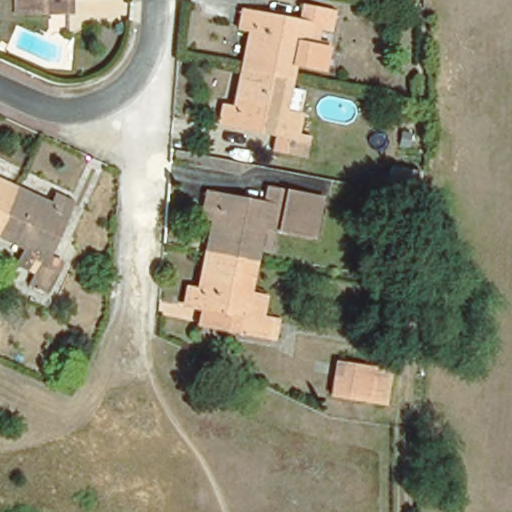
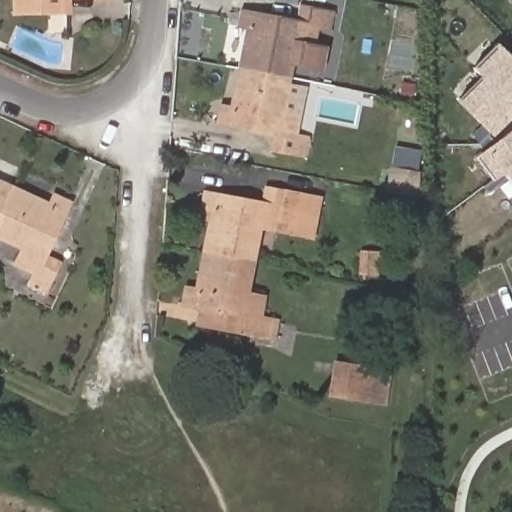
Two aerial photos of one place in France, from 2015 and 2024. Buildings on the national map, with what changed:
unchanged [(17,13),(16,0),(69,0),(69,11),(49,11),(17,13)]
unchanged [(239,68),(246,30),(237,29),(241,10),(299,21),(302,6),(333,11),(330,29),(318,27),(316,39),(330,41),(325,68),(293,63),(290,78),(239,68)]
new [(500,48),(512,60),(512,95),(507,100),(477,69),(500,48)]
unchanged [(284,109),(300,113),(297,134),(308,136),(305,154),(273,148),(275,134),(219,121),(222,105),(230,106),(239,68),(290,78),(284,109)]
new [(462,101),(485,78),(507,100),(512,104),(512,115),(495,133),(462,101)]
new [(488,154),(481,146),(483,144),(495,133),(505,141),(488,154)]
new [(512,136),(512,169),(507,173),(497,180),(481,159),(512,136)]
new [(423,198),(396,192),(391,191),(396,166),(423,172),(423,198)]
new [(512,169),(512,178),(507,173),(512,169)]
new [(507,173),(512,178),(512,179),(492,195),(486,188),(507,173)]
unchanged [(14,185),(0,216),(0,179),(14,185)]
unchanged [(14,185),(50,202),(54,194),(70,202),(46,255),(60,262),(46,291),(29,283),(34,272),(16,263),(21,249),(0,238),(0,216),(14,185)]
unchanged [(203,249),(209,218),(189,215),(192,189),(205,192),(261,202),(265,188),(317,197),(310,235),(261,227),(255,259),(203,249)]
unchanged [(202,307),(184,304),(187,288),(195,289),(203,249),(255,259),(249,292),(265,295),(262,315),(277,318),(275,338),(239,331),(200,323),(202,307)]
unchanged [(377,252),(377,271),(362,271),(363,251),(377,252)]
unchanged [(392,289),(391,311),(378,310),(380,288),(392,289)]
unchanged [(378,368),(377,400),(324,397),(325,365),(378,368)]

